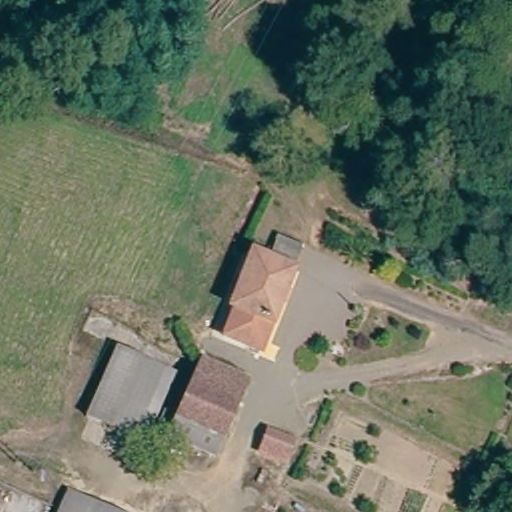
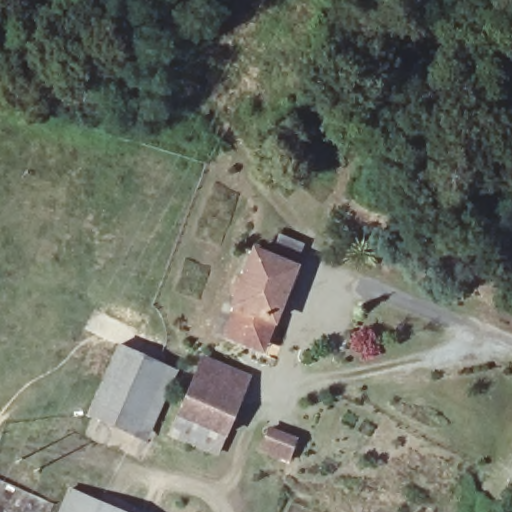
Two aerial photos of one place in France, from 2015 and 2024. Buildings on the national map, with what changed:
unchanged [(236,342),(218,335),(249,256),(267,262),(277,237),(302,247),(300,251),(265,340),(260,352),(236,342)]
unchanged [(346,357),(329,350),(336,334),(352,342),(346,357)]
unchanged [(140,432),(138,438),(86,414),(114,348),(165,370),(140,432)]
unchanged [(190,380),(200,356),(247,375),(237,398),(190,380)]
unchanged [(217,448),(169,430),(190,380),(237,398),(217,448)]
unchanged [(297,442),(288,460),(263,450),(272,432),(297,442)]
unchanged [(109,512),(60,512),(67,495),(109,512)]

